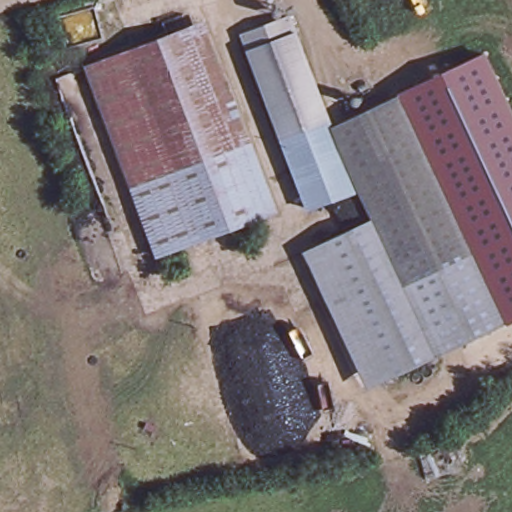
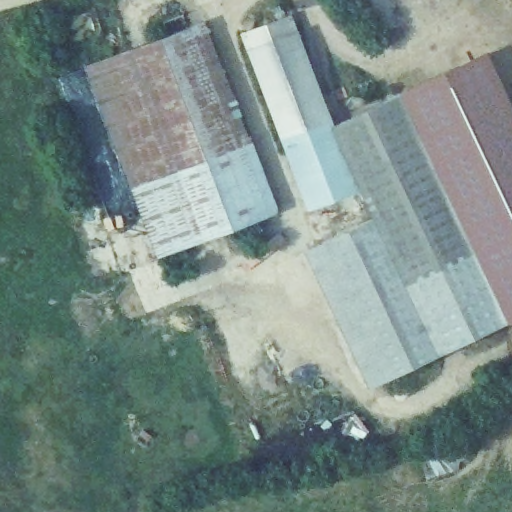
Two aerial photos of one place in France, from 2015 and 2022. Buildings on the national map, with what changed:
unchanged [(292,15),(333,124),(404,92),(447,183),(334,234),(294,132),(284,136),(245,33),(292,15)]
unchanged [(200,21),(270,212),(167,251),(98,60),(200,21)]
unchanged [(510,319),(478,250),(447,183),(404,92),(487,51),(512,105),(512,318),(510,319)]
unchanged [(382,378),(319,241),(334,234),(447,183),(478,250),(510,319),(382,378)]

